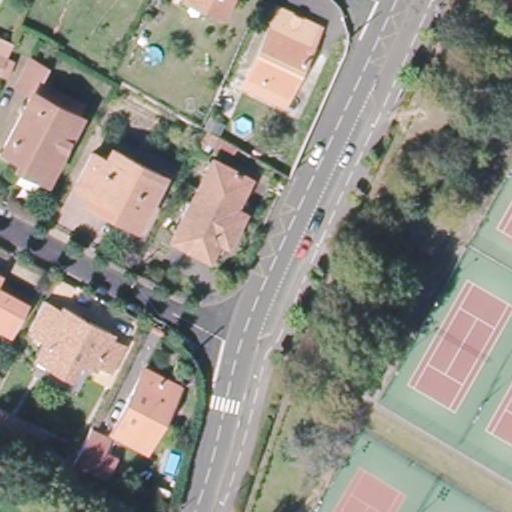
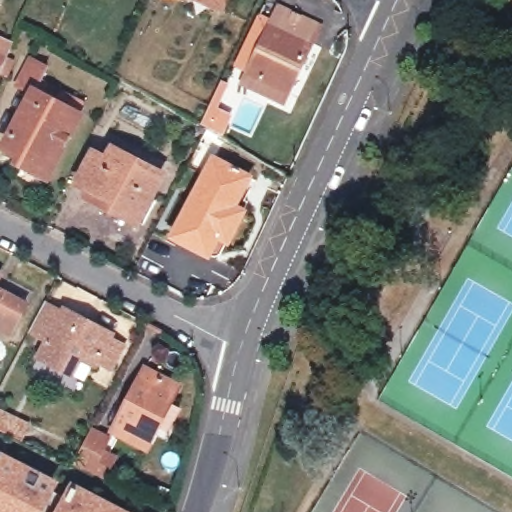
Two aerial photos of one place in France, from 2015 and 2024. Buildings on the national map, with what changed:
unchanged [(213,0),(225,0),(222,5),(213,0)]
unchanged [(311,24),(277,95),(238,77),(272,5),(311,24)]
unchanged [(0,51),(5,54),(0,65),(0,51)]
unchanged [(48,71),(41,85),(60,95),(55,106),(80,118),(47,181),(20,168),(22,161),(0,149),(28,94),(15,87),(27,61),(48,71)]
unchanged [(162,179),(138,224),(92,200),(95,194),(82,185),(96,158),(111,164),(115,154),(162,179)]
unchanged [(244,177),(235,194),(245,199),(221,240),(212,235),(203,253),(169,234),(209,158),(244,177)]
unchanged [(10,332),(0,327),(0,287),(25,300),(10,332)]
unchanged [(109,329),(107,333),(119,340),(100,376),(84,367),(87,359),(26,327),(44,294),(109,329)]
unchanged [(179,388),(149,448),(115,429),(146,369),(179,388)]
unchanged [(21,439),(0,428),(0,411),(27,424),(21,439)]
unchanged [(75,463),(92,428),(110,437),(102,453),(115,459),(106,478),(93,472),(75,463)]
new [(44,512),(0,512),(0,448),(59,479),(44,512)]
new [(136,512),(55,512),(72,479),(136,512)]

